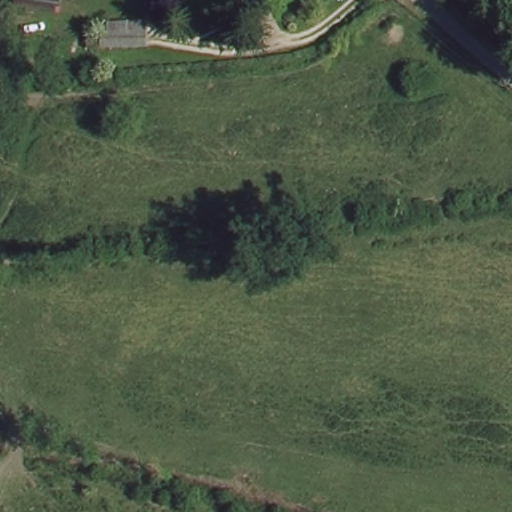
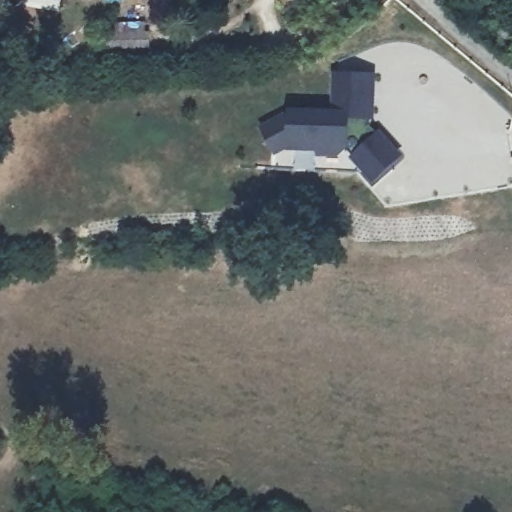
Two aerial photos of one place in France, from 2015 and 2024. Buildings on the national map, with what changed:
unchanged [(93,56),(92,28),(148,27),(149,53),(93,56)]
new [(291,106),(334,109),(336,70),(372,72),(370,119),(363,125),(370,134),(376,128),(397,152),(371,175),(345,144),(318,142),(318,132),(299,131),(284,139),(275,143),(263,120),(272,116),(291,106)]

